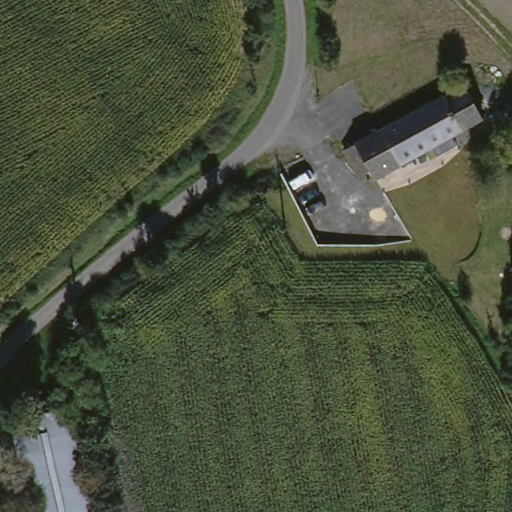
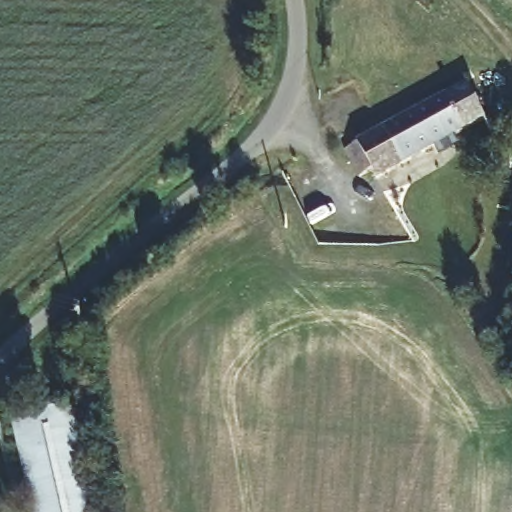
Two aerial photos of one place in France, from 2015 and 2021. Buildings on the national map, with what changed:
unchanged [(462,84),(483,117),(376,182),(366,165),(359,170),(349,152),(462,84)]
unchanged [(67,410),(90,512),(26,512),(7,423),(67,410)]

